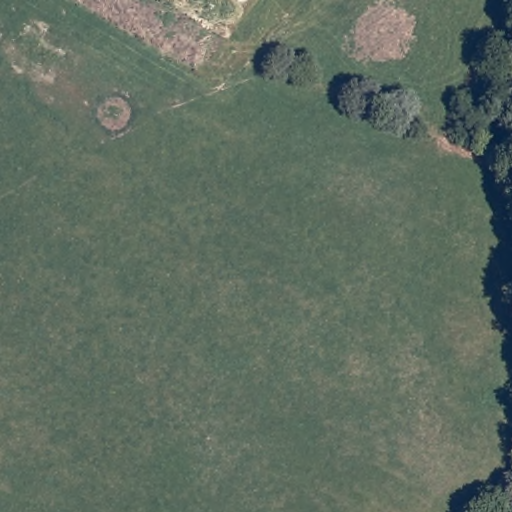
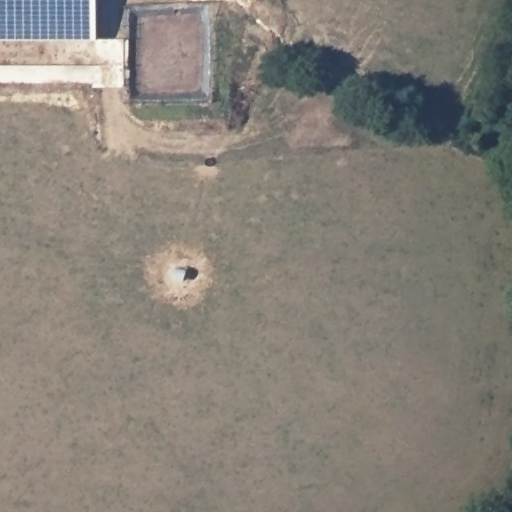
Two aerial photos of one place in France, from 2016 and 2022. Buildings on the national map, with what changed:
new [(96,41),(0,41),(0,0),(96,0),(96,41)]

